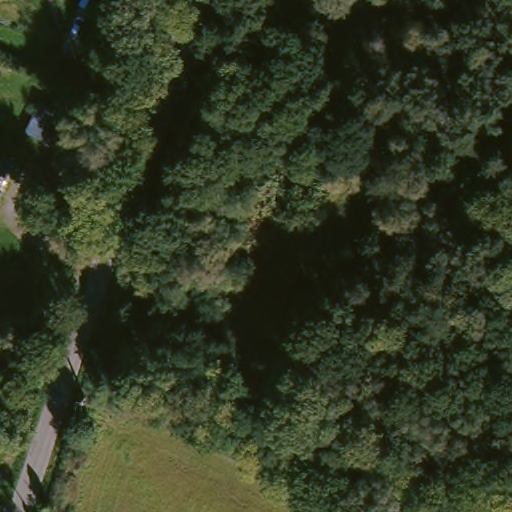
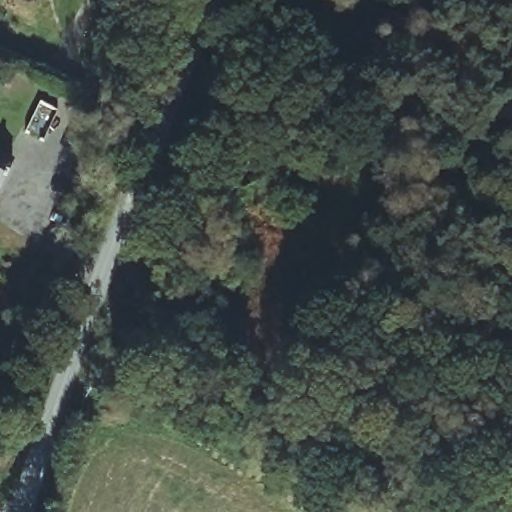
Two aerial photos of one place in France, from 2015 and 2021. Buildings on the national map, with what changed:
unchanged [(12,155),(0,186),(0,150),(12,155)]

